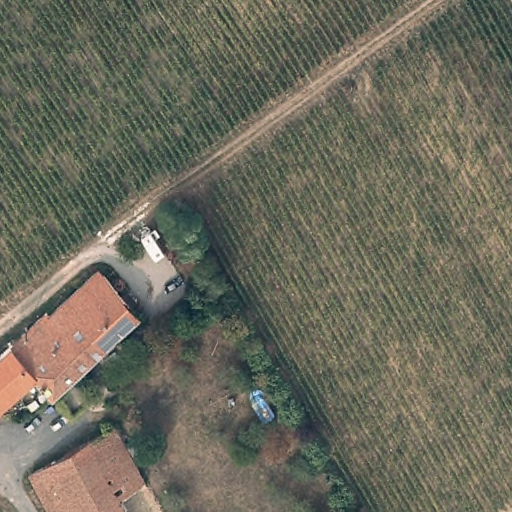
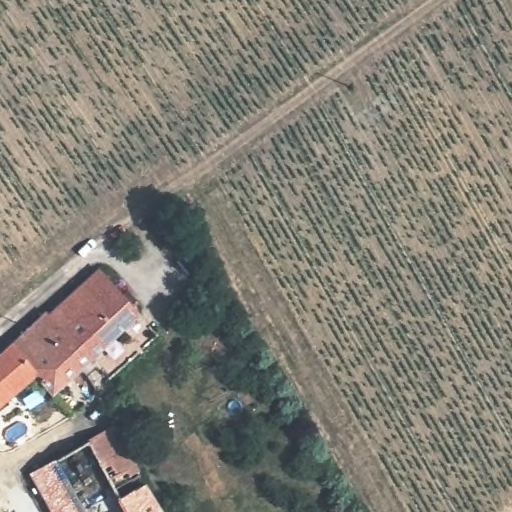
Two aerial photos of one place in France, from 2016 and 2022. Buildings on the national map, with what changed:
unchanged [(30,367),(11,339),(29,325),(103,269),(142,322),(47,390),(30,367)]
unchanged [(0,388),(0,348),(11,339),(30,367),(0,388)]
unchanged [(88,441),(111,428),(161,512),(129,512),(88,441)]
unchanged [(54,460),(88,441),(129,512),(84,512),(54,460)]
unchanged [(28,476),(54,460),(84,512),(50,512),(28,476)]

